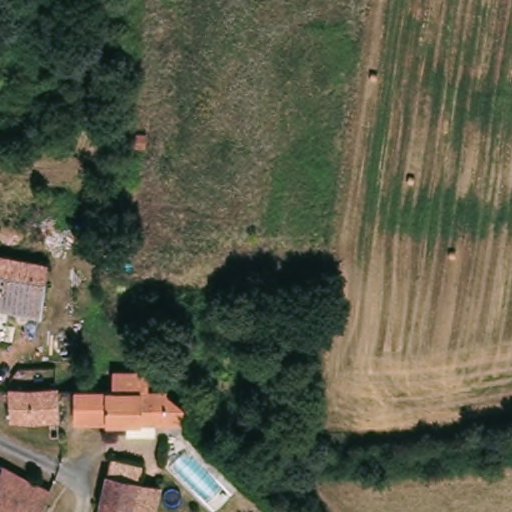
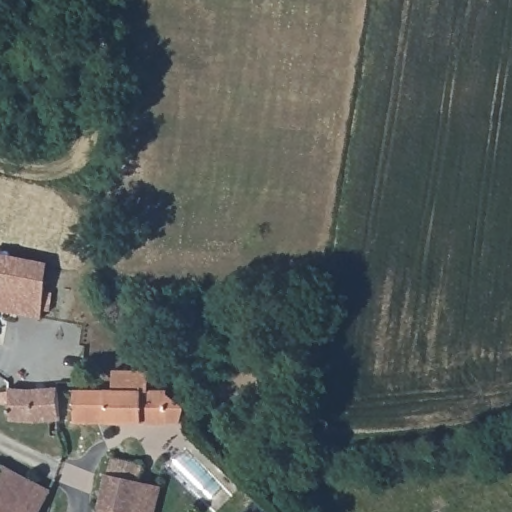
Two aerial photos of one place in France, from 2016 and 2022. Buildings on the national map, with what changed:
unchanged [(52,323),(0,313),(0,233),(49,243),(46,267),(44,295),(56,298),(52,323)]
unchanged [(105,423),(86,423),(71,423),(72,390),(86,390),(105,390),(111,390),(111,388),(112,370),(134,370),(145,370),(145,390),(153,390),(164,389),(164,396),(181,409),(176,424),(153,422),(152,439),(125,438),(125,435),(106,434),(105,423)]
unchanged [(55,437),(47,437),(47,422),(9,421),(8,406),(0,405),(0,394),(7,394),(7,389),(25,390),(53,388),(55,437)]
unchanged [(159,489),(153,512),(97,512),(110,460),(143,468),(139,483),(159,489)]
unchanged [(0,512),(0,466),(15,472),(55,494),(52,498),(45,512),(0,512)]

